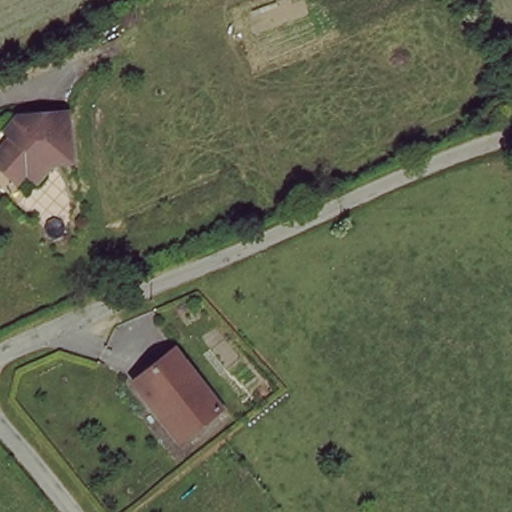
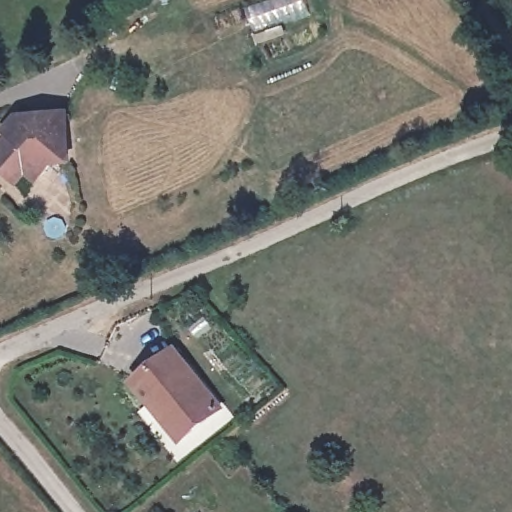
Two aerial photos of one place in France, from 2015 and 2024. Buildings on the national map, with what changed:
unchanged [(16,171),(0,156),(0,146),(11,134),(4,128),(20,109),(63,104),(66,153),(53,154),(46,161),(35,174),(23,164),(16,171)]
unchanged [(177,367),(225,427),(188,458),(140,398),(177,367)]

